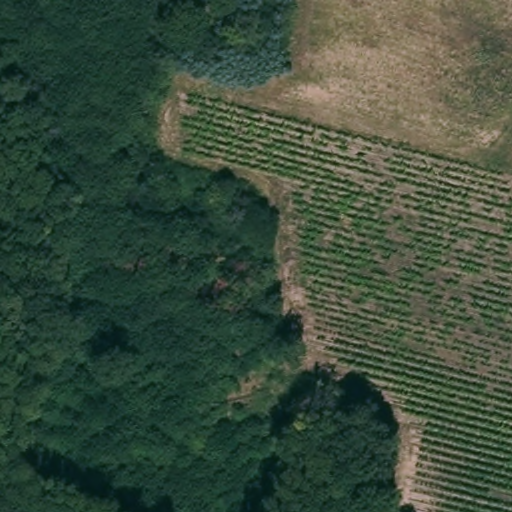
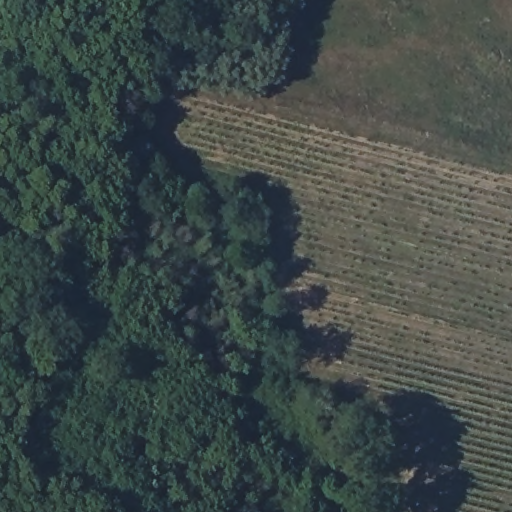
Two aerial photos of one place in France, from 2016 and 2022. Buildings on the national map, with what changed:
[]

